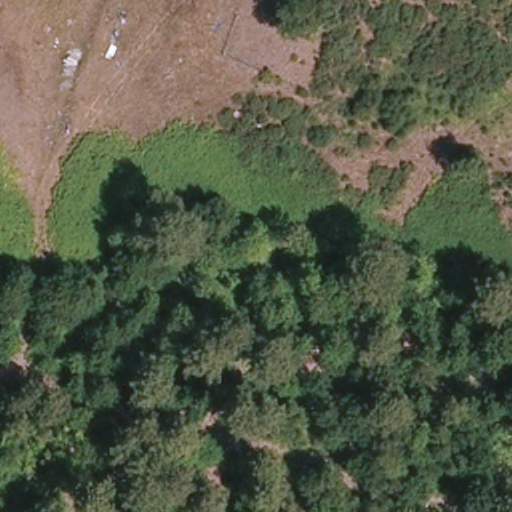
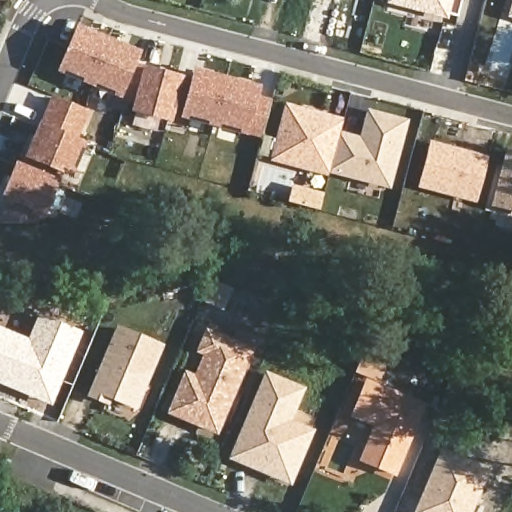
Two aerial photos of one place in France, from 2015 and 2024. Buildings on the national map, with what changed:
new [(448,20),(385,5),(387,0),(453,0),(448,20)]
new [(506,18),(512,0),(512,20),(506,18)]
new [(247,135),(247,136),(172,116),(171,123),(129,112),(132,103),(120,99),(56,73),(75,25),(141,51),(135,63),(142,65),(189,78),(192,68),(260,85),(258,95),(271,99),(261,139),(247,135)]
new [(87,143),(72,179),(63,175),(60,181),(44,220),(38,218),(39,224),(0,224),(0,216),(4,203),(0,202),(0,200),(15,162),(21,164),(24,158),(38,125),(40,125),(51,95),(89,111),(74,137),(87,143)]
new [(340,131),(359,136),(367,109),(410,119),(391,190),(330,174),(330,178),(270,162),(285,103),(344,118),(340,131)]
new [(476,203),(417,188),(430,141),(490,156),(476,203)]
new [(490,208),(506,147),(512,149),(512,213),(490,208)]
new [(235,288),(224,312),(200,301),(211,278),(235,288)]
new [(84,332),(52,406),(0,384),(0,325),(29,338),(40,313),(84,332)]
new [(136,411),(112,401),(109,406),(86,397),(116,324),(165,345),(136,411)]
new [(217,436),(166,414),(185,371),(195,375),(202,356),(196,353),(206,328),(255,349),(217,436)]
new [(265,371),(306,387),(293,419),(318,429),(292,486),(226,461),(265,371)]
new [(365,377),(427,403),(397,477),(358,461),(372,427),(350,416),(365,377)]
new [(492,468),(473,512),(414,512),(441,448),(492,468)]

